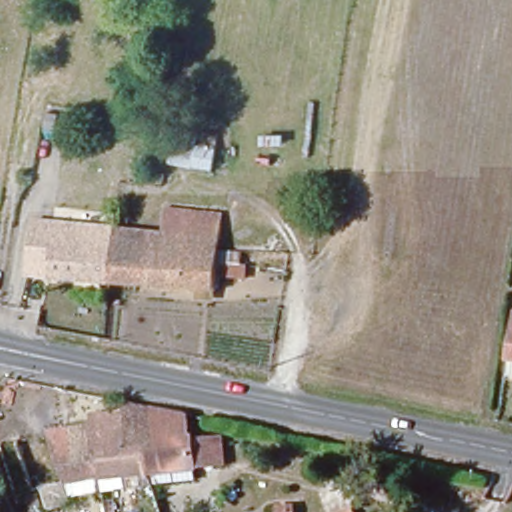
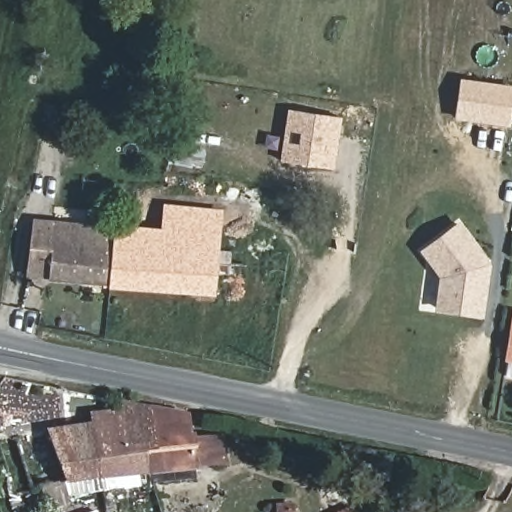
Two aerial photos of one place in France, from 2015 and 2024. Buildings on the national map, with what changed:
new [(465,85),(512,92),(512,99),(508,127),(460,120),(465,85)]
new [(291,110),(340,117),(332,168),(283,161),(291,110)]
unchanged [(169,137),(215,143),(209,172),(165,164),(169,137)]
unchanged [(113,230),(159,234),(161,212),(219,217),(215,252),(229,254),(229,267),(244,268),(242,284),(213,281),(212,298),(107,287),(113,230)]
new [(466,218),(488,263),(481,314),(437,307),(442,275),(432,245),(466,218)]
unchanged [(10,278),(15,221),(113,230),(107,287),(10,278)]
unchanged [(511,311),(512,311),(512,360),(503,359),(511,311)]
unchanged [(503,359),(512,360),(512,374),(501,372),(503,359)]
unchanged [(90,412),(119,410),(124,401),(187,416),(190,437),(221,438),(224,469),(150,476),(62,489),(45,435),(90,425),(90,412)]
unchanged [(273,499),(290,499),(291,512),(273,512),(273,499)]
unchanged [(348,507),(351,512),(339,512),(348,507)]

